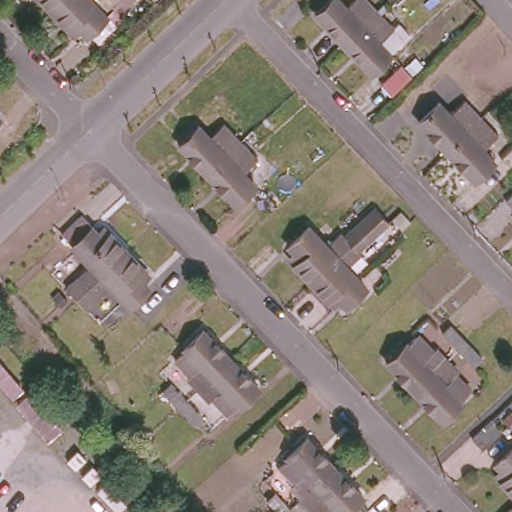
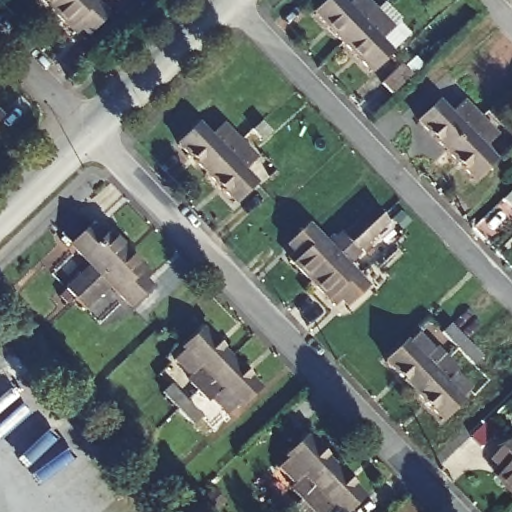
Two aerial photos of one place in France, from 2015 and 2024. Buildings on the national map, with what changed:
unchanged [(46,0),(57,0),(51,6),(46,0)]
unchanged [(83,29),(71,18),(66,22),(51,6),(57,0),(94,0),(102,9),(83,29)]
unchanged [(349,0),(355,0),(370,15),(336,48),(308,19),(327,0),(328,0),(338,10),(349,0)]
unchanged [(387,34),(373,48),(383,59),(363,77),(336,48),(370,15),(387,34)]
unchanged [(445,162),(416,133),(436,114),(446,124),(460,111),(478,129),(445,162)]
unchanged [(481,161),(491,172),(472,190),(445,162),(478,129),(495,148),(481,161)]
unchanged [(205,183),(178,155),(197,136),(207,147),(222,134),(238,151),(205,183)]
unchanged [(256,169),(242,182),(254,194),(233,213),(205,183),(238,151),(256,169)]
unchanged [(345,237),(346,235),(361,222),(375,208),(381,214),(385,219),(371,233),(357,247),(360,250),(345,264),(365,284),(346,303),(335,291),(328,297),(312,280),(351,244),(345,237)]
unchanged [(92,224),(103,235),(111,229),(125,244),(76,292),(66,283),(90,259),(62,229),(81,210),(93,223),(92,224)]
unchanged [(345,237),(351,244),(312,280),(297,264),(303,259),(291,246),(310,228),(329,247),(343,233),(346,235),(345,237)]
unchanged [(141,261),(135,268),(147,281),(128,299),(110,280),(86,303),(76,292),(125,244),(141,261)]
unchanged [(479,354),(463,337),(448,321),(455,314),(470,330),(486,347),(479,354)]
unchanged [(197,384),(190,377),(193,373),(172,352),(202,324),(230,353),(197,384)]
unchanged [(411,334),(422,324),(441,344),(445,341),(452,348),(413,386),(385,356),(410,332),(411,334)]
unchanged [(458,354),(455,358),(474,379),(464,389),(465,391),(440,415),(413,386),(452,348),(458,354)]
unchanged [(257,382),(228,409),(208,388),(205,392),(197,384),(230,353),(257,382)]
unchanged [(193,419),(178,403),(163,387),(170,379),(186,395),(202,411),(193,419)]
unchanged [(480,446),(470,434),(489,416),(500,427),(480,446)]
unchanged [(300,494),(292,486),(296,483),(277,462),(280,457),(305,434),(333,463),(300,494)]
unchanged [(506,473),(494,459),(512,442),(512,491),(500,479),(506,473)]
unchanged [(340,509),(333,502),(322,512),(318,512),(300,494),(333,463),(360,491),(340,509)]
unchanged [(282,512),(281,512),(265,496),(274,488),(290,504),(282,512)]

